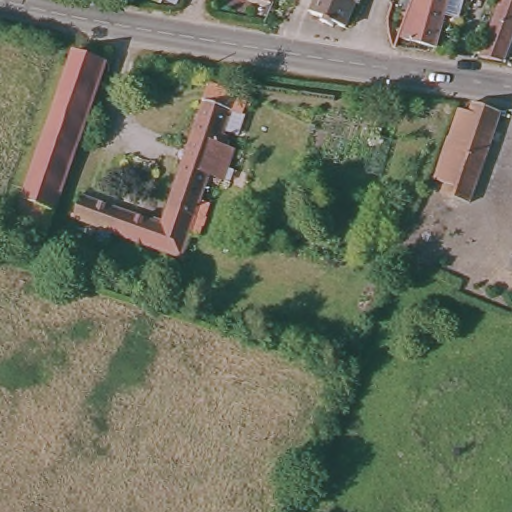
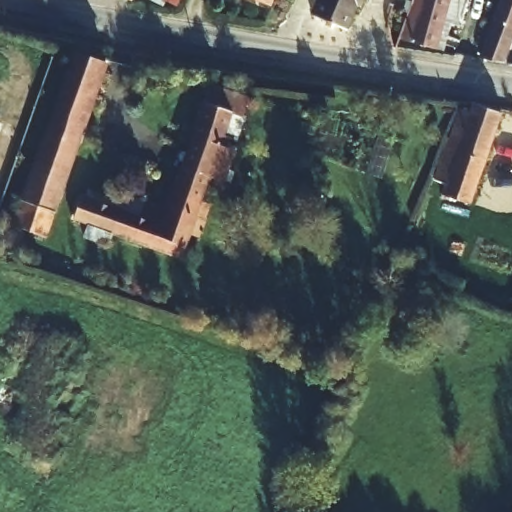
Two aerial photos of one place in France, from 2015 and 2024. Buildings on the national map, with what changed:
unchanged [(163,3),(157,0),(164,0),(163,3)]
unchanged [(272,7),(255,0),(275,0),(272,7)]
unchanged [(332,27),(321,22),(323,18),(311,14),(316,0),(356,0),(345,27),(333,22),(332,27)]
unchanged [(434,46),(403,38),(413,0),(418,0),(420,0),(446,0),(434,46)]
unchanged [(505,0),(512,0),(512,38),(502,67),(485,61),(505,0)]
unchanged [(43,235),(10,223),(71,49),(71,48),(104,60),(43,235)]
unchanged [(83,226),(68,221),(71,212),(77,196),(157,225),(177,166),(207,84),(245,98),(239,116),(227,112),(219,135),(226,138),(222,148),(230,151),(220,182),(205,176),(193,207),(199,210),(196,218),(198,219),(193,236),(184,233),(175,257),(83,226)]
unchanged [(473,105),(500,117),(467,207),(440,196),(444,186),(432,181),(448,143),(449,143),(461,112),(469,116),(472,108),(473,105)]
unchanged [(509,256),(512,257),(512,273),(504,269),(509,256)]

